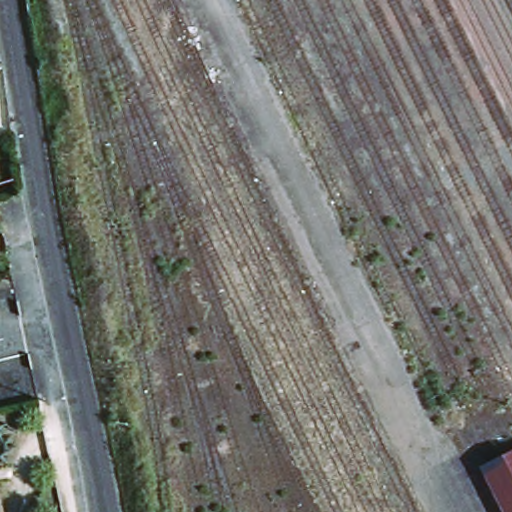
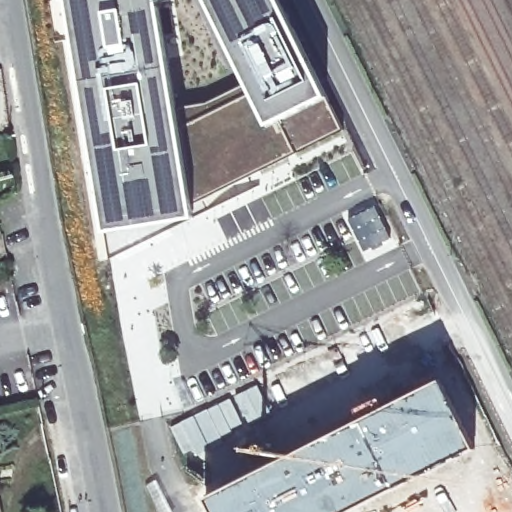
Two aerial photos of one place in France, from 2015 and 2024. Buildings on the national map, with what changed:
new [(160,224),(107,230),(104,189),(93,128),(76,49),(64,0),(160,0),(197,218),(160,224)]
new [(323,102),(295,113),(268,126),(247,84),(224,31),(207,0),(281,0),(330,99),(323,102)]
new [(374,203),(390,237),(364,250),(347,216),(374,203)]
new [(285,456),(293,452),(373,410),(441,378),(473,445),(395,487),(350,512),(212,512),(204,497),(285,456)]
new [(257,384),(269,412),(246,423),(184,458),(169,426),(231,397),(257,384)]
demolished [(478,467),(512,450),(512,512),(502,512),(478,467)]

